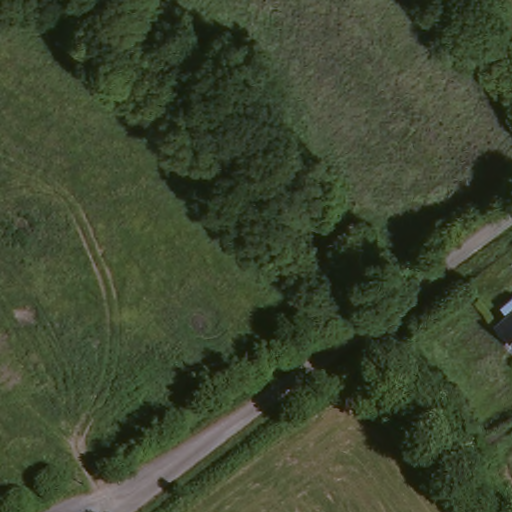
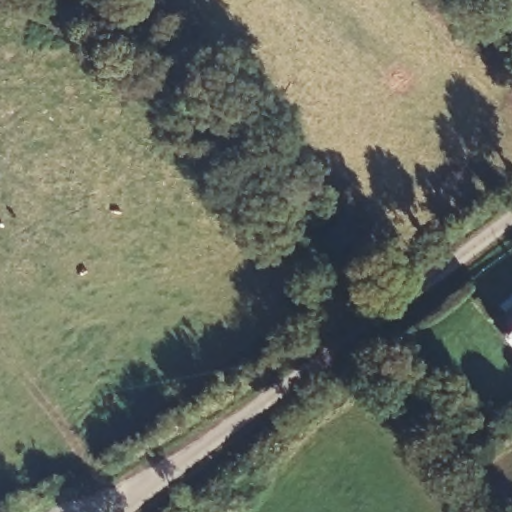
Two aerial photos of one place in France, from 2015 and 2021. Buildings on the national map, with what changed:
unchanged [(496,328),(508,319),(503,313),(512,306),(512,348),(496,328)]

